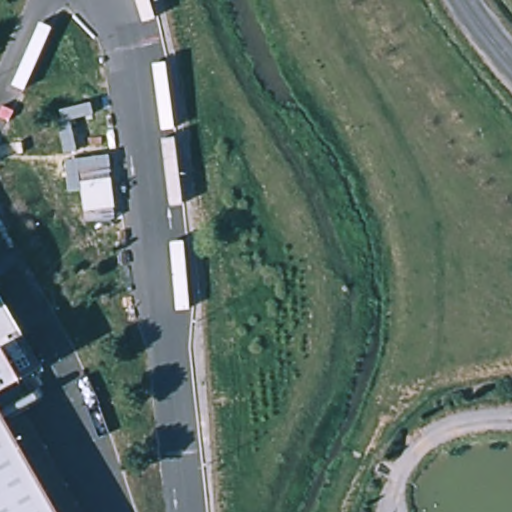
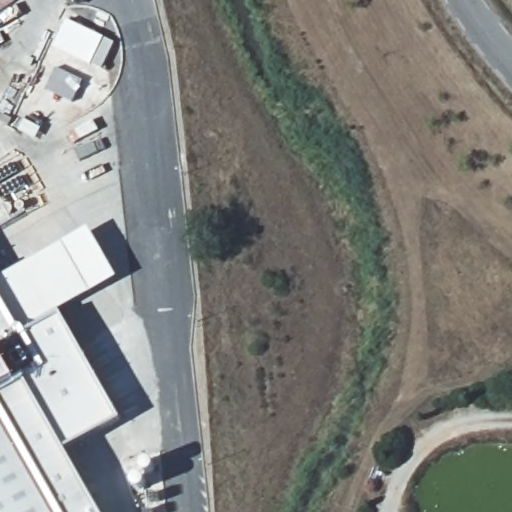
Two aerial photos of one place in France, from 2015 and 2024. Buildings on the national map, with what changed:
new [(54,46),(67,19),(104,36),(90,65),(54,46)]
new [(24,412),(5,423),(0,415),(0,391),(38,370),(0,304),(0,278),(88,226),(117,278),(60,312),(120,420),(65,450),(99,512),(81,512),(24,412)]
unchanged [(0,304),(38,370),(0,391),(0,304)]
unchanged [(24,412),(81,512),(0,512),(0,415),(5,423),(24,412)]

